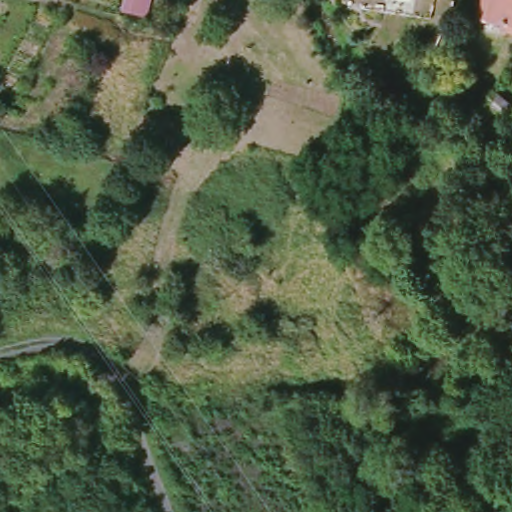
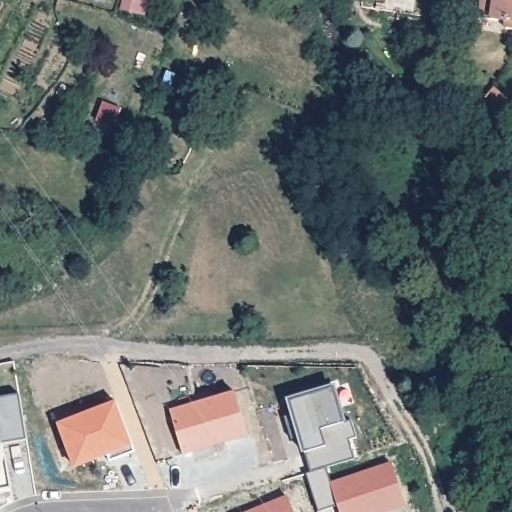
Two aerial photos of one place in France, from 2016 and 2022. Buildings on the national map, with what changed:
unchanged [(122,10),(124,0),(152,0),(146,16),(122,10)]
unchanged [(410,3),(389,0),(413,0),(412,3),(410,3)]
unchanged [(507,23),(480,20),(481,13),(483,0),(512,0),(512,32),(507,31),(507,23)]
new [(287,411),(283,398),(328,384),(338,419),(347,417),(352,434),(344,436),(350,455),(305,469),(295,433),(286,436),(279,414),(287,411)]
new [(20,393),(27,438),(2,442),(2,437),(0,438),(0,397),(20,393)]
new [(113,401),(132,451),(106,460),(103,453),(71,464),(55,423),(113,401)]
new [(320,466),(325,482),(387,462),(401,502),(371,512),(336,512),(333,504),(314,510),(301,472),(320,466)]
new [(262,510),(259,504),(283,495),(290,512),(256,512),(262,510)]
new [(247,509),(248,512),(241,512),(247,509)]

